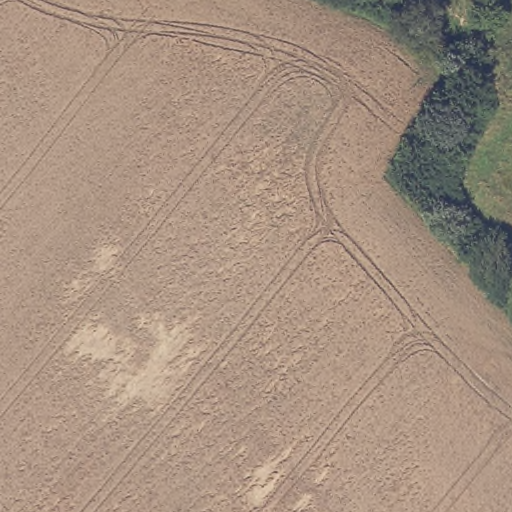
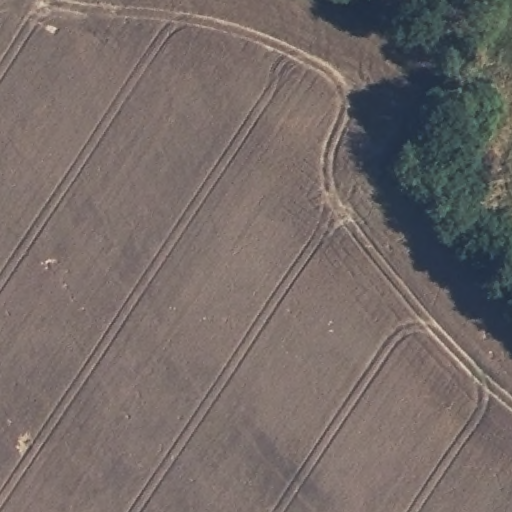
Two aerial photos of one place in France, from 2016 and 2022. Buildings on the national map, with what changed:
unchanged [(433,171),(416,163),(425,144),(442,152),(433,171)]

